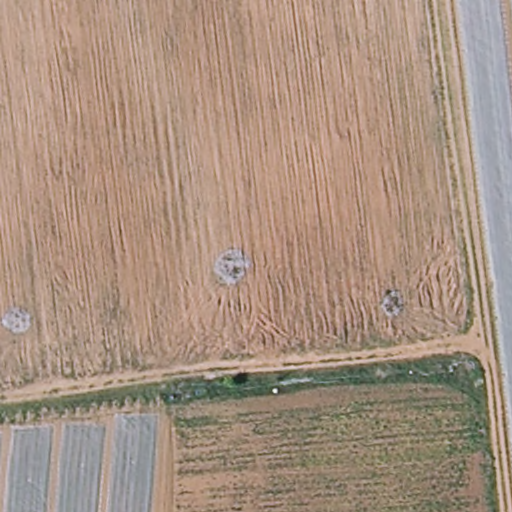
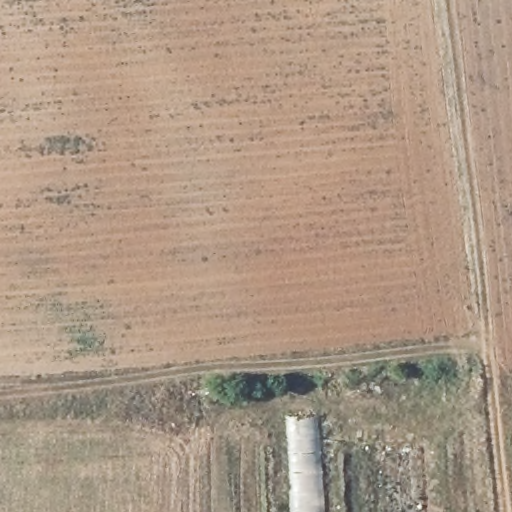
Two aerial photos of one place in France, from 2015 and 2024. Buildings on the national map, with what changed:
new [(290,512),(286,416),(318,415),(324,512),(290,512)]

